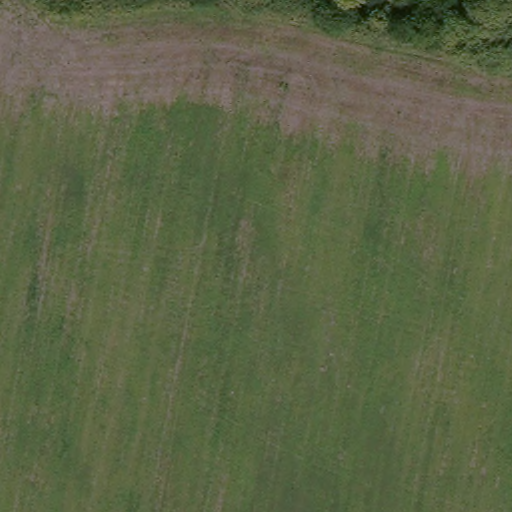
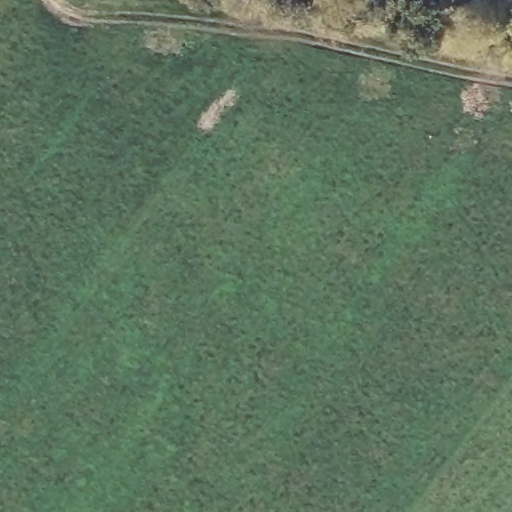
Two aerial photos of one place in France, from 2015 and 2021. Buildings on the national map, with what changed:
[]

